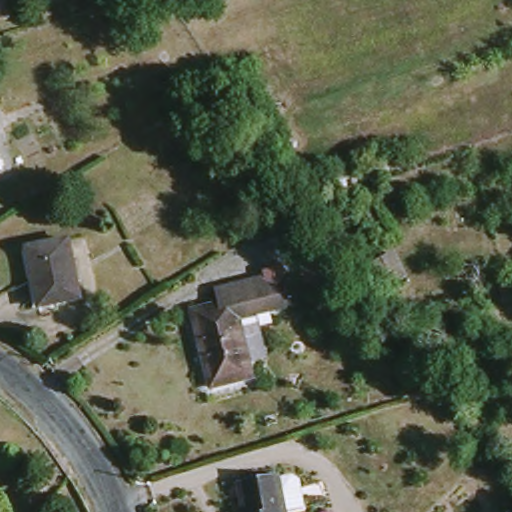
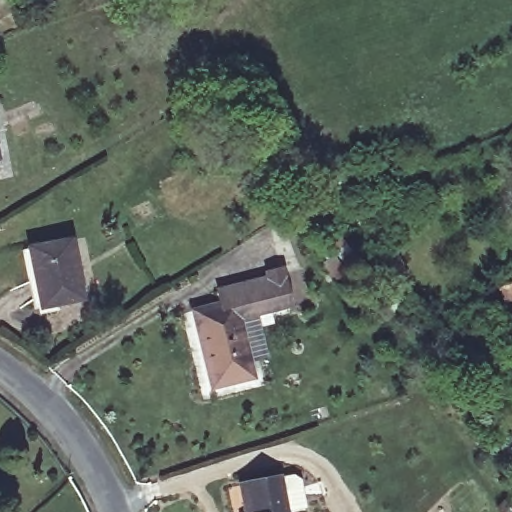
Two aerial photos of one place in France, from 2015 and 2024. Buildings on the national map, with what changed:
unchanged [(26,253),(68,246),(79,305),(37,312),(26,253)]
unchanged [(246,370),(250,388),(207,395),(193,316),(218,312),(217,297),(282,287),(287,318),(259,322),(267,367),(246,370)]
unchanged [(271,483),(290,480),(296,512),(236,512),(233,491),(271,483)]

